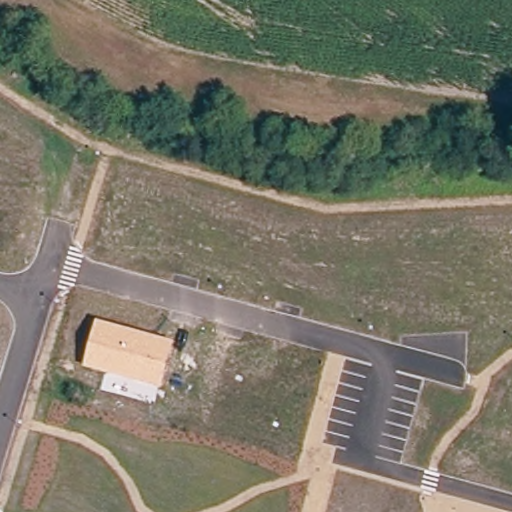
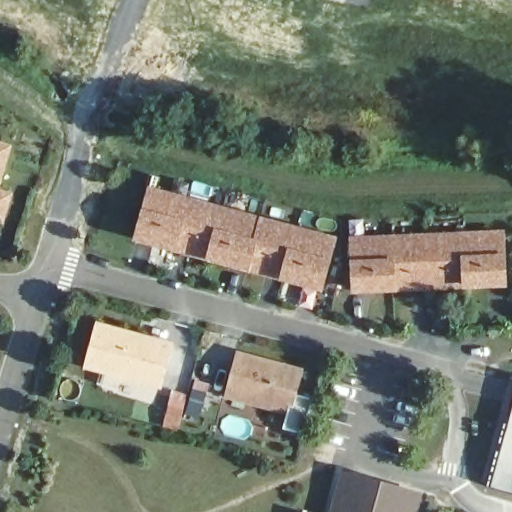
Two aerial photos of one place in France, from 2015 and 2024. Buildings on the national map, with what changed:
new [(13,143),(0,188),(0,140),(13,143)]
new [(323,291),(281,280),(252,272),(209,260),(178,252),(134,240),(142,208),(149,184),(337,235),(332,259),(323,291)]
new [(14,192),(5,222),(0,221),(0,188),(14,192)]
new [(506,228),(507,248),(508,286),(462,289),(398,291),(353,293),(352,259),(350,234),(506,228)]
unchanged [(173,341),(162,388),(84,367),(97,319),(173,341)]
new [(305,368),(292,414),(225,396),(237,349),(305,368)]
new [(512,416),(512,492),(492,486),(512,416)]
new [(417,512),(330,512),(342,468),(423,489),(417,512)]

